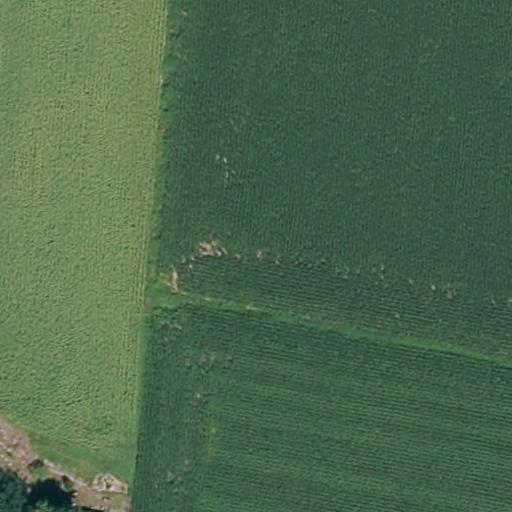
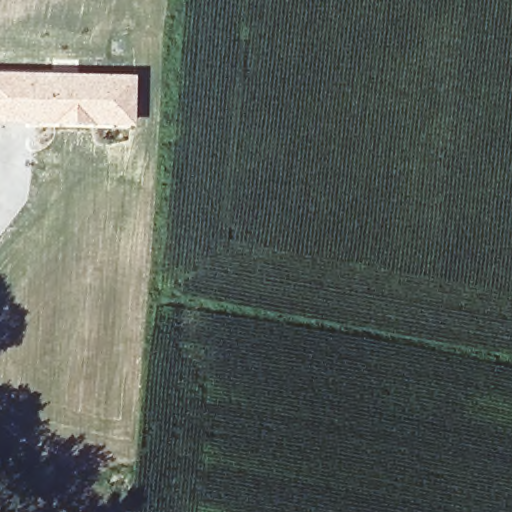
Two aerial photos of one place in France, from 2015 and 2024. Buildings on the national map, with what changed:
new [(135,72),(134,125),(51,124),(0,121),(0,68),(135,72)]

